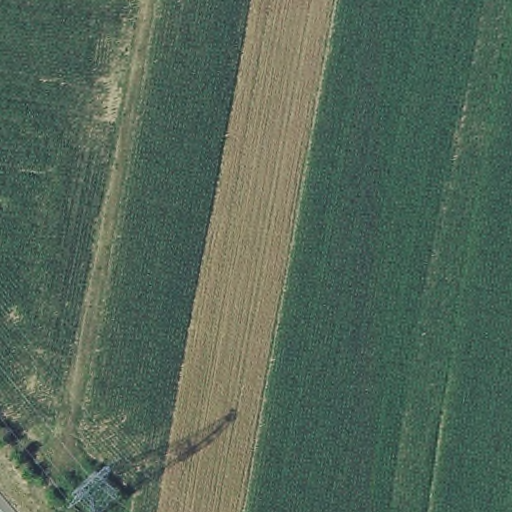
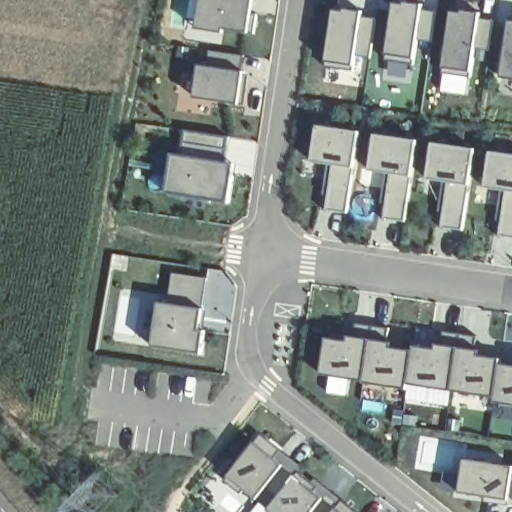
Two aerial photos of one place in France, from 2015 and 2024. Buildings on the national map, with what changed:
new [(243,32),(190,24),(193,0),(247,0),(243,32)]
new [(417,2),(415,10),(432,12),(428,41),(412,38),(409,62),(381,58),(390,0),(402,0),(417,2)]
new [(357,8),(355,16),(372,18),(368,47),(352,44),(349,68),(321,64),(330,4),(357,8)]
new [(475,9),(472,18),(489,19),(485,48),(469,46),(466,69),(438,65),(447,6),(475,9)]
new [(495,79),(504,20),(512,21),(512,81),(495,79)]
new [(236,105),(189,100),(193,66),(206,68),(208,51),(242,55),(236,105)]
new [(355,130),(345,212),(324,210),(330,165),(307,162),(312,126),(355,130)]
new [(172,154),(182,155),(185,130),(229,137),(225,161),(235,162),(230,203),(166,193),(172,154)]
new [(412,138),(401,220),(381,218),(386,173),(365,170),(369,134),(412,138)]
new [(470,147),(460,229),(440,227),(445,182),(423,179),(427,143),(470,147)]
new [(512,154),(512,238),(496,236),(502,190),(480,188),(485,151),(512,154)]
new [(196,328),(206,329),(202,357),(158,351),(168,273),(203,278),(196,328)]
new [(320,340),(341,343),(342,335),(361,337),(357,377),(315,372),(320,340)]
new [(384,340),(383,348),(402,351),(400,382),(357,377),(361,337),(384,340)]
new [(406,351),(427,353),(428,346),(447,348),(443,387),(401,382),(406,351)]
new [(470,350),(469,359),(488,361),(485,393),(443,387),(447,348),(470,350)]
new [(493,366),(512,369),(512,401),(488,398),(493,366)]
new [(277,463),(250,497),(223,476),(250,442),(277,463)]
new [(512,466),(512,478),(510,500),(460,494),(465,460),(512,466)]
new [(302,512),(267,512),(261,507),(289,474),(316,495),(302,512)]
new [(327,512),(330,508),(335,512),(327,512)]

